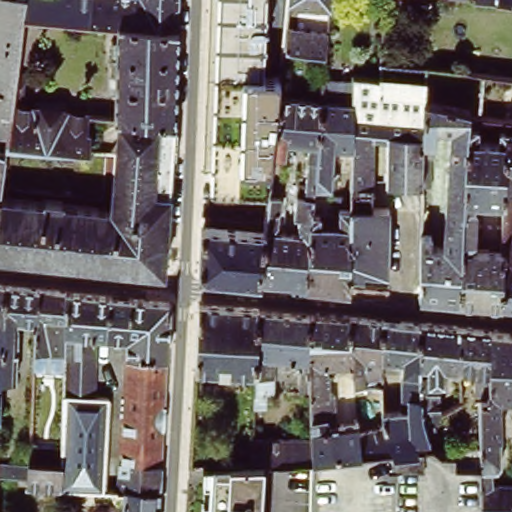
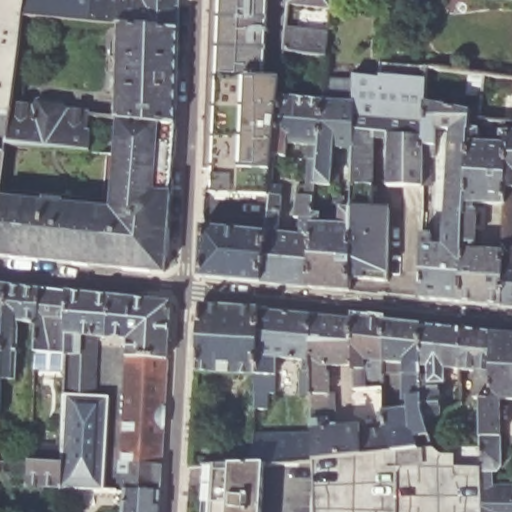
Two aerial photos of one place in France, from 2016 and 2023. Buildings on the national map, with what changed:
unchanged [(25,1),(23,21),(16,78),(25,79),(23,104),(13,103),(12,111),(6,146),(0,145),(0,0),(18,0),(25,1)]
unchanged [(26,0),(91,0),(88,26),(23,21),(25,1),(26,0)]
unchanged [(140,1),(140,0),(178,0),(178,34),(118,29),(88,26),(91,0),(128,0),(140,1)]
unchanged [(288,10),(286,33),(327,37),(324,61),(284,56),(279,101),(273,159),(269,198),(211,196),(213,172),(203,172),(210,0),(289,0),(288,10)]
unchanged [(329,14),(288,10),(289,0),(331,0),(329,14)]
unchanged [(383,3),(383,0),(410,0),(409,6),(383,3)]
unchanged [(512,4),(479,0),(512,0),(512,4)]
unchanged [(178,34),(175,128),(118,122),(115,122),(116,63),(113,62),(110,62),(109,61),(110,47),(111,45),(112,45),(117,45),(118,29),(178,34)]
unchanged [(349,212),(351,152),(351,111),(351,85),(351,77),(379,79),(380,64),(424,68),(424,105),(422,191),(386,191),(387,139),(373,139),(371,213),(388,214),(386,286),(348,282),(349,262),(349,212)]
unchanged [(351,111),(351,152),(334,151),(331,176),(337,177),(335,188),(314,187),(320,105),(322,84),(351,85),(351,111)]
unchanged [(274,237),(299,239),(299,234),(298,232),(299,222),(294,221),(297,190),(305,190),(306,185),(301,185),(302,178),(306,178),(309,149),(286,147),(284,160),(273,159),(279,101),(320,105),(314,187),(312,217),(306,291),(260,287),(265,235),(269,200),(281,201),(278,229),(274,232),(274,237)]
unchanged [(458,307),(419,303),(422,191),(424,105),(469,118),(468,123),(458,307)]
unchanged [(12,111),(88,119),(85,137),(89,138),(88,155),(6,150),(6,146),(12,111)]
unchanged [(43,206),(43,204),(59,205),(59,208),(108,212),(118,122),(175,128),(162,276),(0,259),(0,202),(43,206)]
unchanged [(504,187),(503,210),(472,209),(471,215),(476,218),(474,248),(469,251),(469,256),(502,256),(500,311),(458,307),(468,123),(477,124),(476,149),(498,149),(499,127),(505,127),(504,138),(504,187)]
unchanged [(502,256),(503,210),(504,187),(504,138),(512,139),(512,312),(500,311),(502,256)]
unchanged [(4,162),(0,192),(0,160),(4,162)]
unchanged [(312,217),(340,220),(341,212),(333,212),(334,200),(344,201),(344,212),(349,212),(349,262),(348,282),(348,295),(306,291),(312,217)]
unchanged [(198,281),(201,219),(236,220),(236,233),(265,235),(260,287),(198,281)]
unchanged [(3,288),(1,335),(0,334),(0,288),(3,288)]
unchanged [(16,325),(19,332),(13,384),(0,383),(0,371),(1,335),(3,288),(39,292),(36,327),(16,325)]
unchanged [(39,292),(65,295),(63,356),(63,372),(33,373),(36,327),(39,292)]
unchanged [(27,468),(28,453),(60,454),(63,372),(63,356),(65,295),(128,302),(125,343),(93,340),(91,400),(106,400),(101,493),(58,490),(26,489),(26,480),(0,479),(0,466),(27,468)]
unchanged [(124,359),(125,343),(128,302),(169,307),(166,361),(124,359)]
unchanged [(253,374),(194,369),(198,304),(258,309),(258,310),(253,374)]
unchanged [(258,310),(309,315),(311,393),(299,393),(299,371),(303,371),(303,359),(275,357),(274,391),(266,391),(265,408),(253,407),(253,374),(258,310)]
unchanged [(312,459),(311,438),(311,393),(309,315),(349,319),(353,364),(328,363),(328,370),(330,371),(329,393),(329,424),(366,421),(364,387),(369,387),(383,386),(384,410),(384,428),(394,451),(312,459)]
unchanged [(364,358),(364,362),(366,362),(366,366),(368,366),(369,387),(364,387),(354,388),(353,364),(349,319),(349,317),(381,320),(383,359),(364,358)]
unchanged [(394,451),(384,428),(384,410),(402,409),(402,373),(398,373),(383,371),(383,360),(383,359),(381,320),(419,324),(426,386),(429,419),(433,448),(394,451)]
unchanged [(463,369),(441,366),(447,411),(429,419),(426,386),(419,324),(458,328),(463,369)]
unchanged [(477,411),(477,370),(463,369),(458,328),(491,331),(491,333),(491,396),(482,396),(483,412),(477,411)]
unchanged [(491,396),(491,333),(512,334),(512,397),(501,396),(501,465),(497,465),(497,471),(483,471),(483,448),(483,412),(482,396),(491,396)]
unchanged [(1,335),(0,371),(0,334),(1,335)]
unchanged [(118,465),(124,359),(166,361),(163,404),(159,468),(118,465)]
unchanged [(459,395),(459,388),(465,387),(466,394),(459,395)]
unchanged [(312,459),(263,462),(251,463),(252,439),(311,438),(312,459)]
unchanged [(394,451),(433,448),(483,448),(483,471),(483,484),(483,512),(313,512),(312,459),(394,451)]
unchanged [(212,464),(251,463),(263,462),(263,475),(260,512),(208,512),(211,477),(212,464)]
unchanged [(116,494),(118,473),(118,465),(159,468),(158,496),(123,494),(116,494)]
unchanged [(512,485),(512,512),(483,512),(483,484),(512,485)]
unchanged [(158,496),(157,512),(122,512),(123,494),(158,496)]

